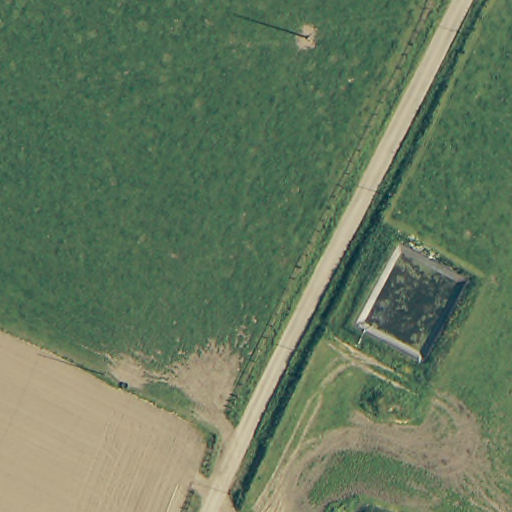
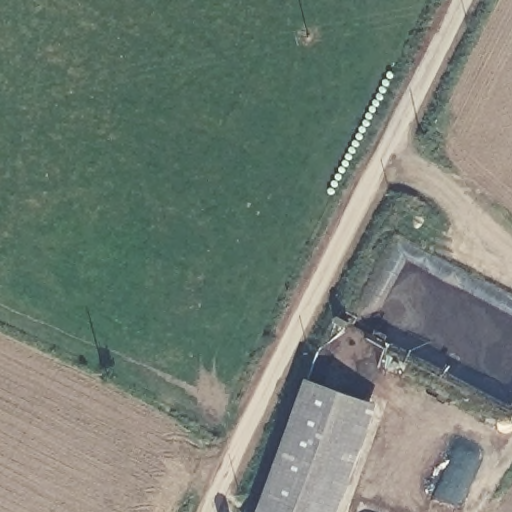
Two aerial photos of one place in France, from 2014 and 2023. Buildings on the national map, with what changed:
new [(312,377),(379,403),(335,512),(266,512),(312,377)]

